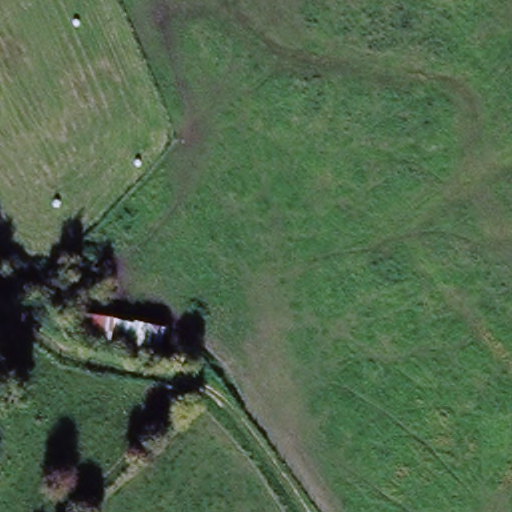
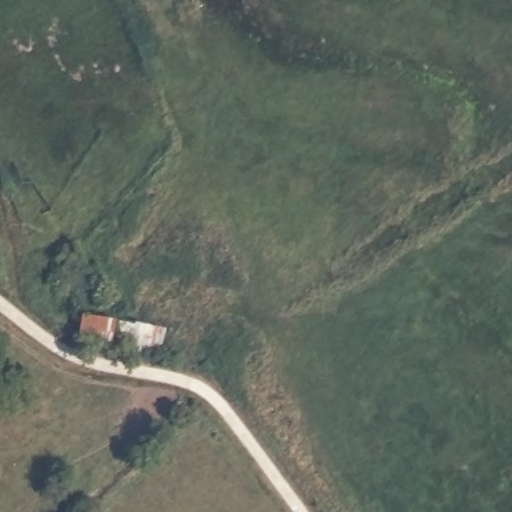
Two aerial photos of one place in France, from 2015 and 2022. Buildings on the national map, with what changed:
unchanged [(124,318),(110,349),(70,332),(82,303),(124,318)]

